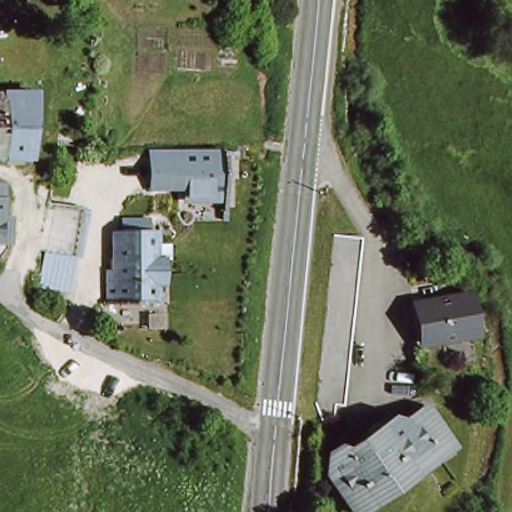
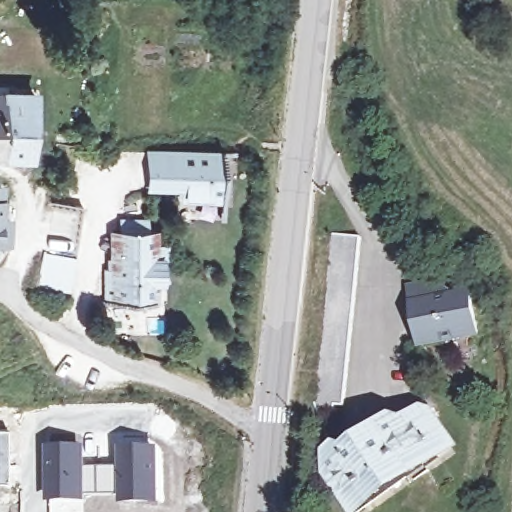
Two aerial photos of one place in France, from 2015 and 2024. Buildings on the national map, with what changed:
unchanged [(37,97),(31,158),(0,159),(0,97),(37,97)]
unchanged [(223,201),(189,201),(188,191),(149,191),(148,149),(223,150),(223,201)]
unchanged [(87,206),(79,256),(48,251),(56,201),(87,206)]
unchanged [(5,207),(6,229),(0,229),(0,208),(5,207)]
unchanged [(144,219),(145,231),(152,231),(153,257),(160,257),(161,280),(153,280),(153,300),(106,301),(106,268),(112,268),(111,231),(120,231),(120,219),(144,219)]
unchanged [(361,241),(347,409),(315,406),(331,238),(361,241)]
unchanged [(427,342),(421,304),(469,295),(477,334),(427,342)]
unchanged [(399,423),(404,429),(433,412),(452,447),(424,464),(427,470),(409,478),(406,475),(352,510),(327,469),(399,423)]
new [(160,448),(159,502),(124,502),(124,498),(120,496),(87,495),(86,501),(44,501),(44,444),(85,444),(86,466),(120,466),(120,447),(160,448)]

